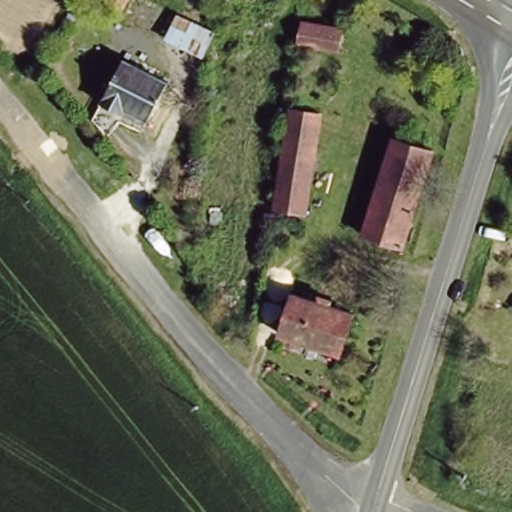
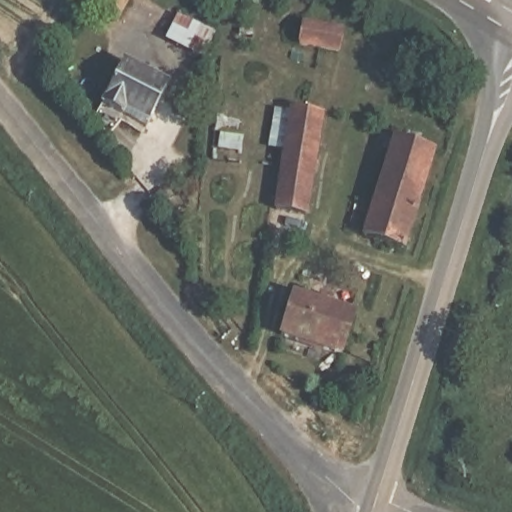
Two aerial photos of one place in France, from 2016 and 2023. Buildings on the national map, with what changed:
unchanged [(99,12),(107,0),(125,0),(113,20),(99,12)]
unchanged [(202,54),(167,36),(178,15),(213,33),(202,54)]
unchanged [(299,21),(343,27),(339,51),(296,44),(299,21)]
unchanged [(176,87),(156,125),(105,98),(125,60),(176,87)]
unchanged [(321,116),(305,213),(275,209),(291,111),(321,116)]
unchanged [(374,196),(392,138),(432,151),(414,208),(374,196)]
unchanged [(414,208),(402,247),(362,235),(374,196),(414,208)]
unchanged [(279,337),(293,297),(354,317),(340,358),(279,337)]

